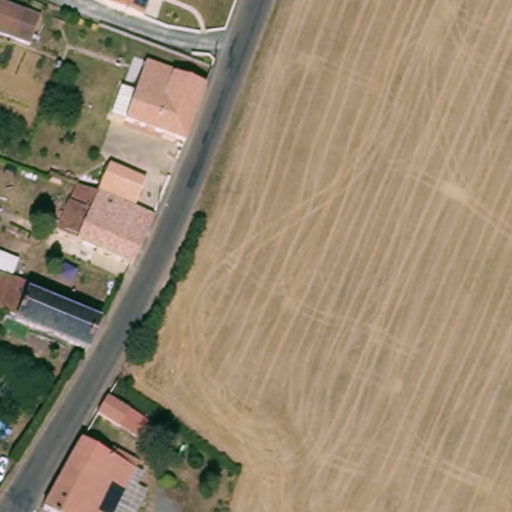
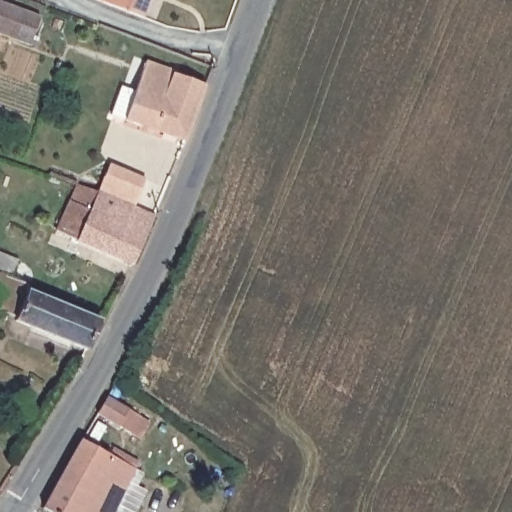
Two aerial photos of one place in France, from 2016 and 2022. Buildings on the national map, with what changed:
unchanged [(136,15),(96,0),(142,0),(136,15)]
unchanged [(35,17),(24,44),(0,35),(0,4),(35,17)]
unchanged [(116,82),(131,87),(142,57),(171,67),(170,70),(201,81),(181,136),(120,115),(105,109),(116,82)]
unchanged [(89,193),(101,164),(136,178),(124,206),(89,193)]
unchanged [(89,193),(124,206),(146,215),(123,265),(50,232),(69,185),(89,193)]
unchanged [(15,262),(9,276),(0,272),(0,256),(15,262)]
unchanged [(84,352),(58,341),(56,346),(37,338),(39,334),(12,322),(13,319),(0,313),(0,299),(0,298),(0,275),(26,287),(25,291),(63,307),(97,321),(84,352)]
unchanged [(112,397),(113,395),(135,408),(124,425),(103,412),(112,397)]
unchanged [(109,512),(44,512),(38,509),(80,442),(132,467),(109,512)]

